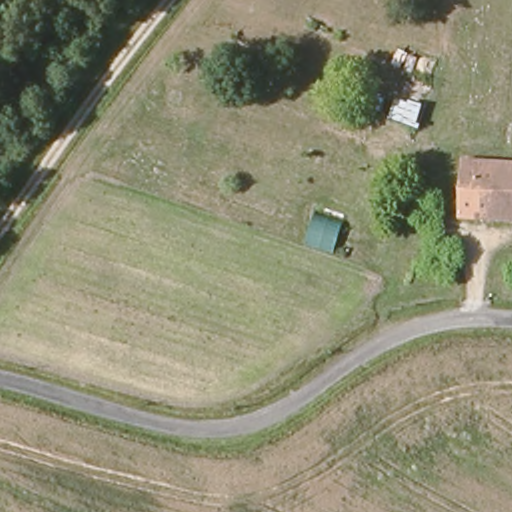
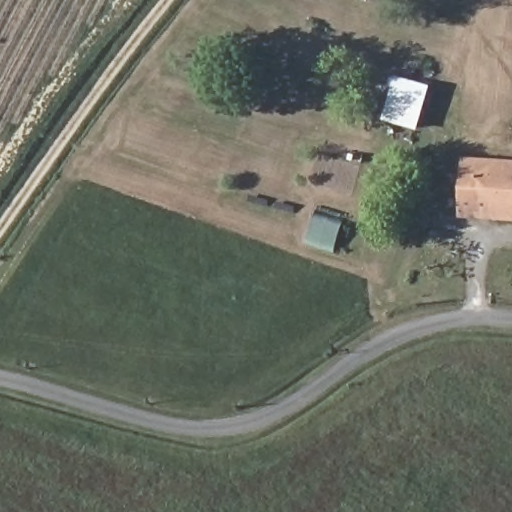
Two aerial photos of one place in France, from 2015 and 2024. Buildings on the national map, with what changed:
unchanged [(385,91),(425,104),(418,126),(379,112),(385,91)]
unchanged [(512,165),(512,219),(459,216),(462,161),(512,165)]

